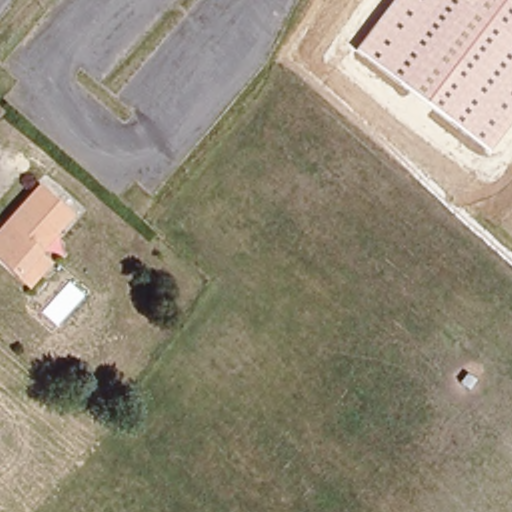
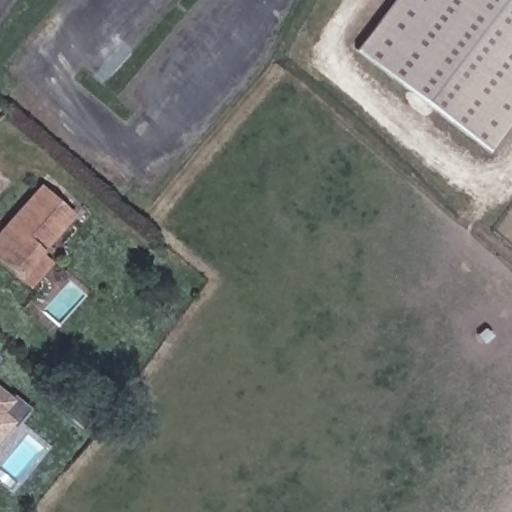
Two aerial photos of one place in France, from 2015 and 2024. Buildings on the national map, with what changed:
unchanged [(488,151),(354,49),(392,0),(512,0),(512,119),(488,151)]
unchanged [(0,125),(0,101),(11,111),(0,125)]
unchanged [(38,183),(66,208),(35,246),(49,259),(27,283),(0,260),(0,226),(5,221),(38,183)]
new [(12,393),(27,407),(14,423),(12,422),(0,436),(0,386),(10,395),(12,393)]

